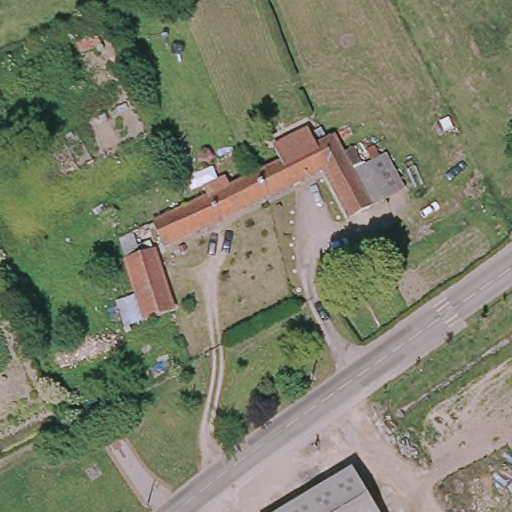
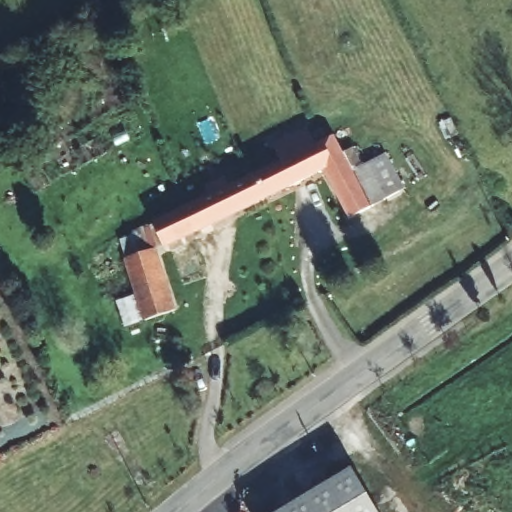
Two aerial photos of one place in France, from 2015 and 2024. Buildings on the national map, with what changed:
unchanged [(228,189),(261,174),(263,173),(281,165),(274,148),(303,136),(311,152),(322,147),(325,154),(327,154),(329,153),(337,149),(339,152),(346,168),(354,184),(370,176),(373,183),(374,185),(385,206),(346,225),(322,174),(158,247),(148,224),(180,210),(210,197),(206,188),(224,180),(228,189)]
unchanged [(172,316),(142,324),(127,260),(157,251),(172,316)]
unchanged [(352,467),(377,512),(271,512),(352,467)]

